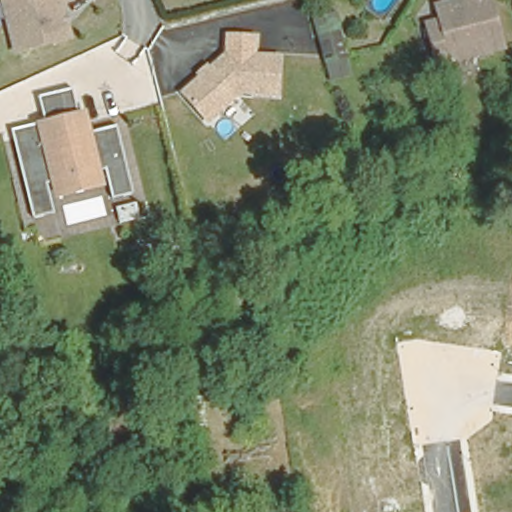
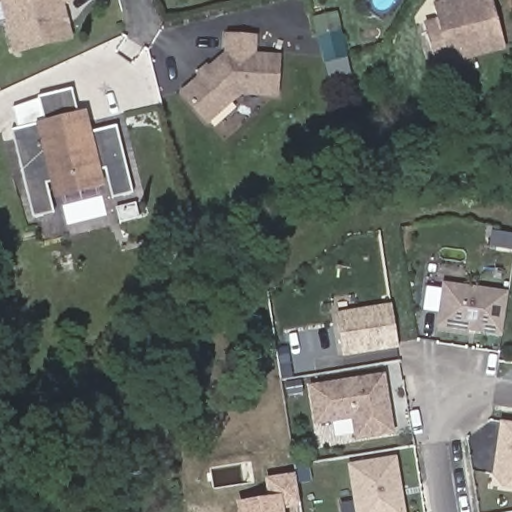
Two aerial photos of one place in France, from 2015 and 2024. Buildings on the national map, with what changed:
unchanged [(68,0),(57,3),(68,38),(15,54),(0,4),(0,0),(68,0)]
unchanged [(457,0),(490,0),(502,49),(452,61),(451,57),(432,62),(423,24),(437,20),(433,7),(457,0)]
unchanged [(338,10),(355,77),(327,85),(308,17),(338,10)]
unchanged [(220,53),(220,31),(256,32),(255,54),(281,55),(278,98),(239,97),(209,123),(178,95),(220,53)]
unchanged [(41,120),(35,95),(71,87),(77,111),(88,108),(95,129),(115,125),(132,195),(112,201),(102,168),(99,169),(102,188),(50,195),(53,213),(30,217),(11,130),(41,120)]
new [(502,336),(435,328),(442,281),(507,291),(502,336)]
new [(398,347),(343,356),(336,311),(392,303),(398,347)]
new [(395,435),(355,440),(352,419),(314,425),(308,384),(384,373),(395,435)]
new [(492,474),(500,420),(512,422),(512,489),(503,488),(492,474)]
new [(355,512),(347,463),(397,456),(405,512),(355,512)]
new [(267,497),(265,478),(296,473),(301,506),(285,509),(285,512),(238,512),(237,503),(267,497)]

